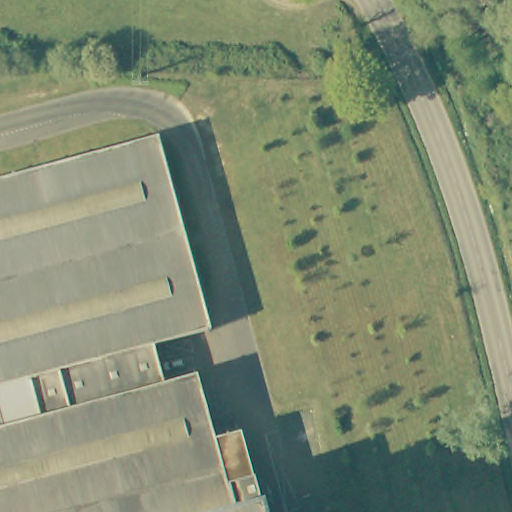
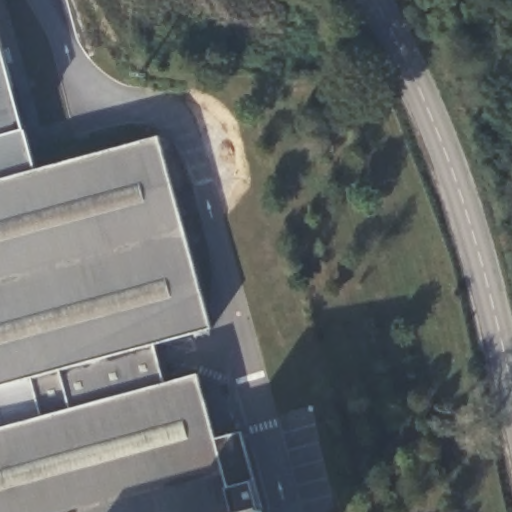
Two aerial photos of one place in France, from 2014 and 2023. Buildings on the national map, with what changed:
new [(24,132),(34,169),(0,178),(0,46),(24,132)]
unchanged [(159,136),(210,329),(154,344),(164,383),(197,375),(214,439),(234,512),(0,512),(0,426),(40,415),(30,376),(0,384),(0,178),(159,136)]
unchanged [(30,376),(40,415),(0,426),(0,384),(30,376)]
unchanged [(260,510),(259,510),(259,512),(234,512),(214,439),(240,432),(260,510)]

